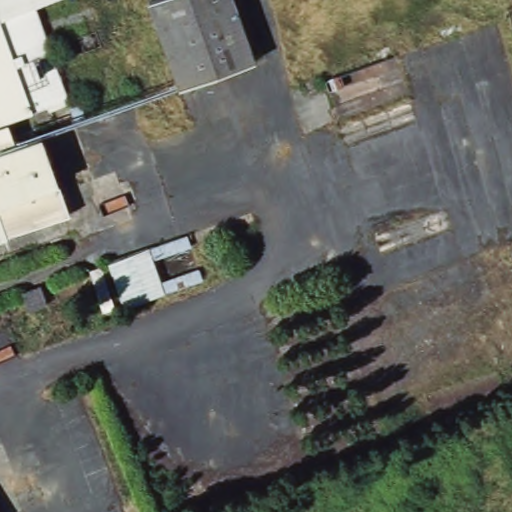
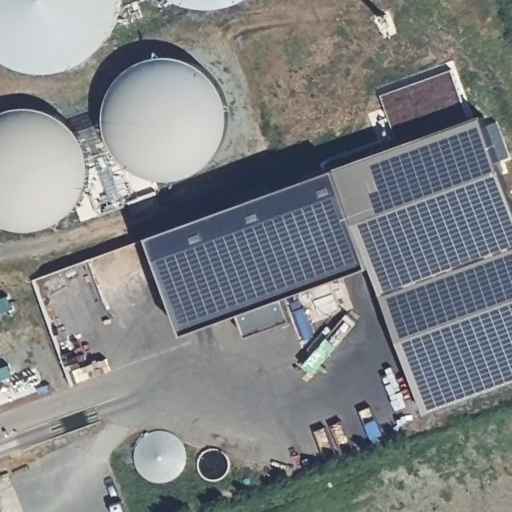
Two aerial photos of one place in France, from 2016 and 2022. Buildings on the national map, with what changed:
demolished [(256,54),(184,81),(154,0),(236,0),(256,54)]
demolished [(40,10),(71,100),(37,111),(4,22),(40,10)]
demolished [(1,15),(4,22),(37,111),(0,124),(0,13),(1,15)]
new [(335,167),(483,113),(512,194),(512,380),(425,412),(381,292),(371,265),(282,296),(290,320),(247,335),(240,312),(185,331),(150,234),(335,167)]
demolished [(45,134),(77,213),(0,241),(0,150),(45,134)]
demolished [(149,249),(164,291),(115,310),(97,267),(149,249)]
demolished [(53,299),(60,320),(40,328),(32,306),(53,299)]

